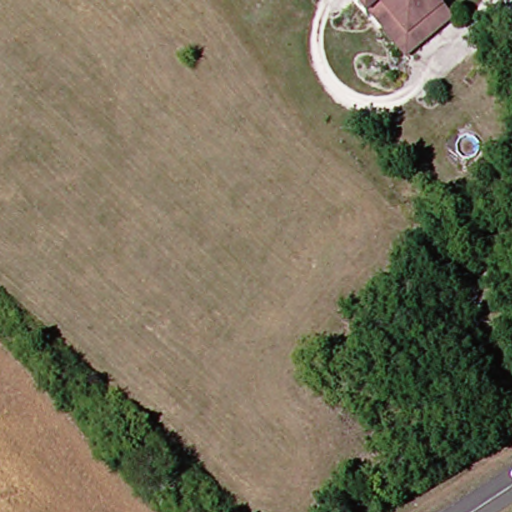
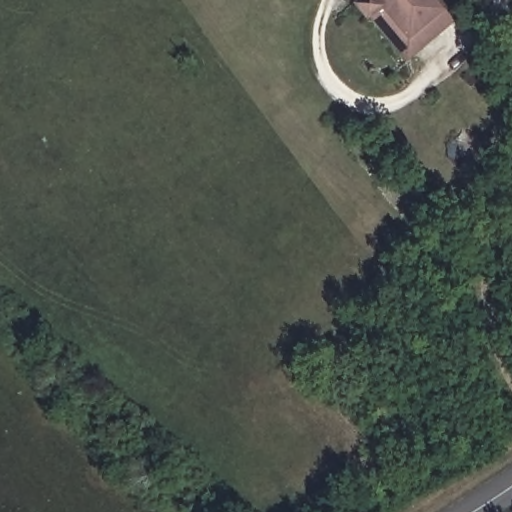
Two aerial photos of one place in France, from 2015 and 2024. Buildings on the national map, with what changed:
unchanged [(358,6),(366,0),(439,0),(449,12),(413,41),(387,10),(375,19),(372,22),(358,6)]
unchanged [(458,24),(411,62),(375,19),(387,10),(413,41),(449,12),(458,24)]

